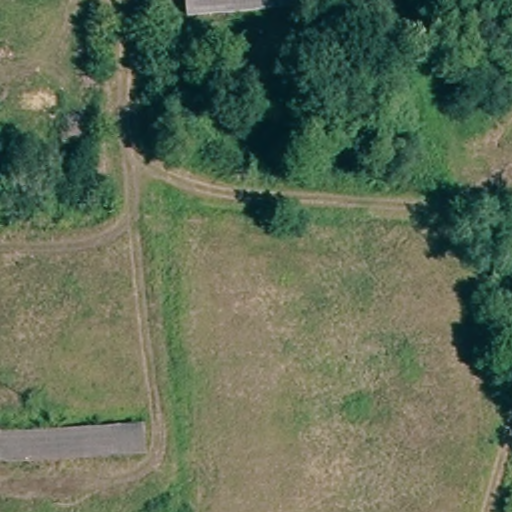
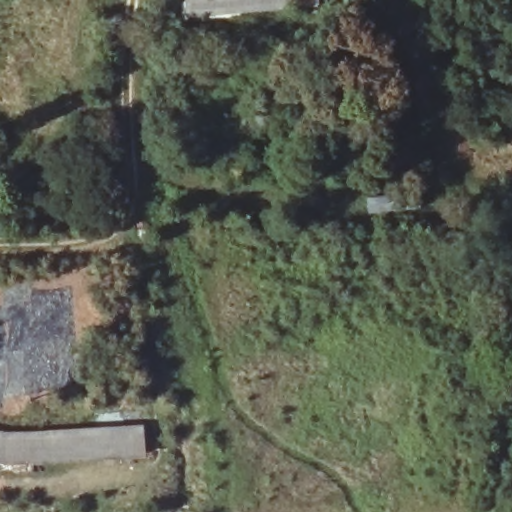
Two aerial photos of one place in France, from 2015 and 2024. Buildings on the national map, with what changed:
unchanged [(316,9),(186,13),(186,0),(315,0),(316,9)]
unchanged [(0,456),(0,434),(138,432),(139,455),(0,456)]

